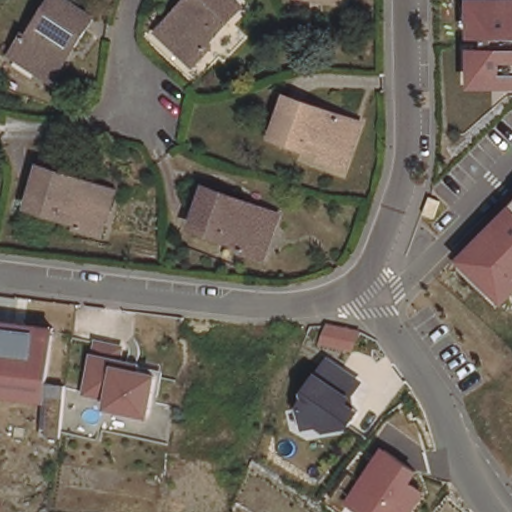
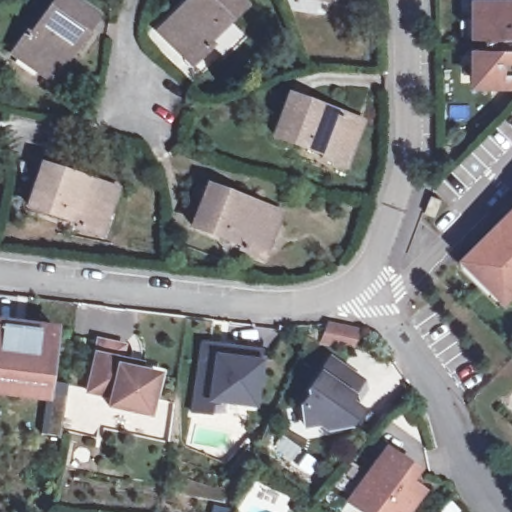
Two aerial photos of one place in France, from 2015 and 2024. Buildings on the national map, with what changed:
unchanged [(55,81),(15,53),(28,34),(32,36),(57,0),(70,0),(97,18),(55,81)]
unchanged [(210,43),(213,47),(196,64),(162,31),(192,0),(238,0),(245,7),(210,43)]
unchanged [(336,0),(347,0),(346,2),(336,0)]
unchanged [(471,0),(512,0),(512,90),(472,90),(471,0)]
unchanged [(357,126),(341,171),(320,164),(321,159),(273,141),(287,101),(357,126)]
unchanged [(112,190),(97,235),(75,228),(76,223),(28,207),(40,166),(112,190)]
unchanged [(282,213),(265,258),(243,250),(245,245),(196,227),(205,205),(210,190),(211,187),(282,213)]
unchanged [(505,305),(460,261),(512,207),(512,298),(505,305)]
unchanged [(45,400),(0,393),(0,318),(51,327),(45,400)]
unchanged [(360,350),(323,347),(323,324),(361,328),(360,350)]
unchanged [(120,337),(117,356),(139,360),(138,366),(156,370),(147,417),(102,408),(105,396),(82,391),(88,344),(92,331),(120,337)]
new [(202,345),(219,347),(217,357),(235,359),(236,349),(261,352),(254,405),(195,398),(201,355),(202,345)]
unchanged [(350,403),(362,412),(353,427),(329,436),(315,427),(305,430),(301,398),(320,371),(329,356),(365,381),(350,403)]
new [(52,395),(67,397),(62,436),(48,434),(52,395)]
unchanged [(414,483),(427,491),(414,512),(353,512),(346,507),(385,445),(421,472),(414,483)]

